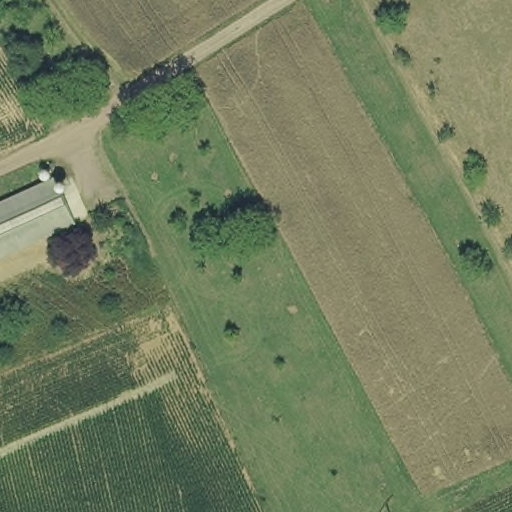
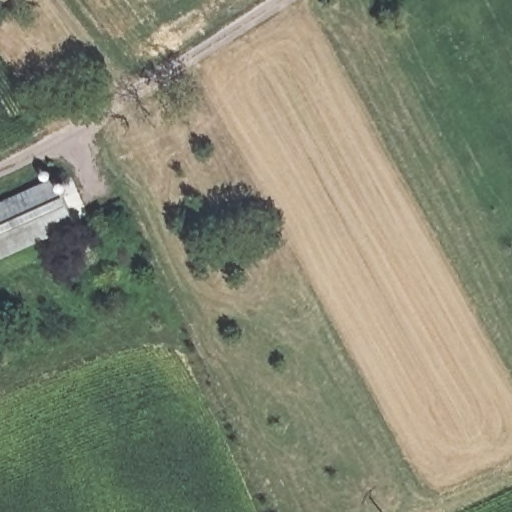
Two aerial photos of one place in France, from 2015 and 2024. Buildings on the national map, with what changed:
unchanged [(53,181),(73,223),(0,258),(0,206),(53,181)]

